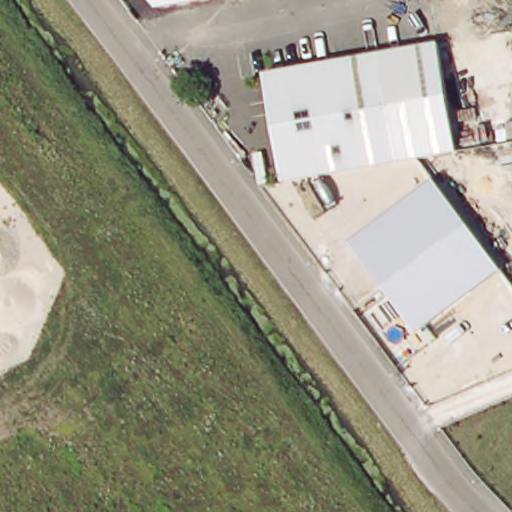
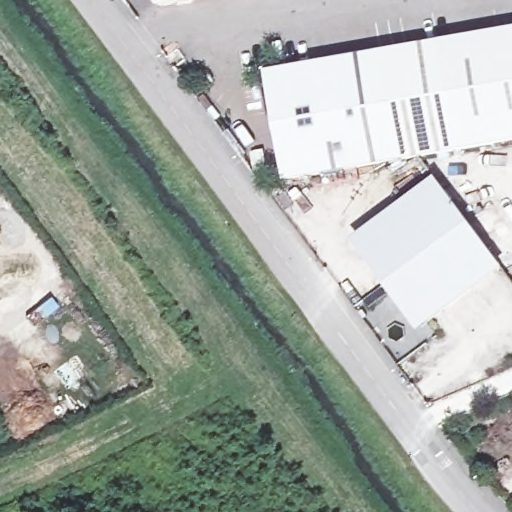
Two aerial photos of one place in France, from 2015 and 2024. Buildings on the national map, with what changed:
unchanged [(152,0),(200,0),(157,7),(152,0)]
new [(441,45),(512,33),(512,142),(459,152),(441,45)]
unchanged [(459,152),(287,183),(269,63),(385,46),(385,52),(441,45),(459,152)]
unchanged [(502,271),(420,333),(354,242),(435,181),(502,271)]

